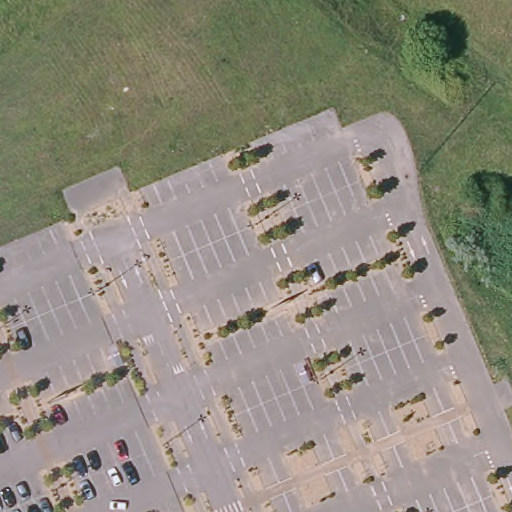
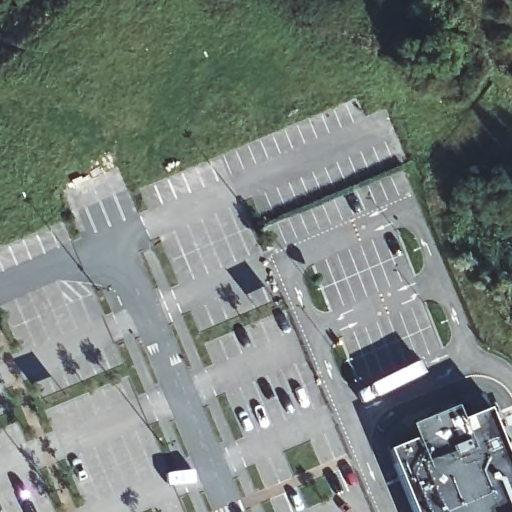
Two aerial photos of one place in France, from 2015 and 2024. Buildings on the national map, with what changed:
new [(398,409),(445,391),(451,406),(460,402),(455,387),(472,380),(512,482),(512,512),(408,512),(377,434),(404,424),(398,409)]

